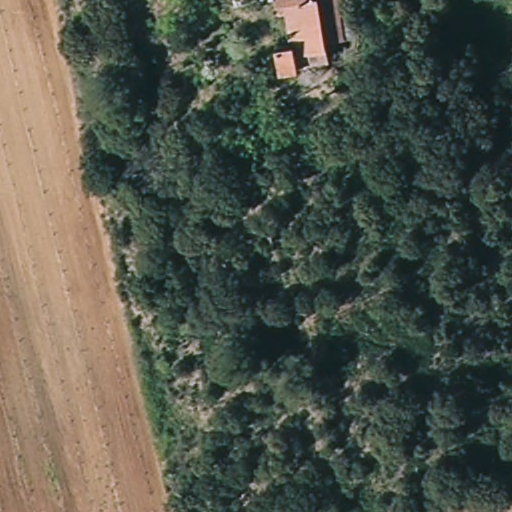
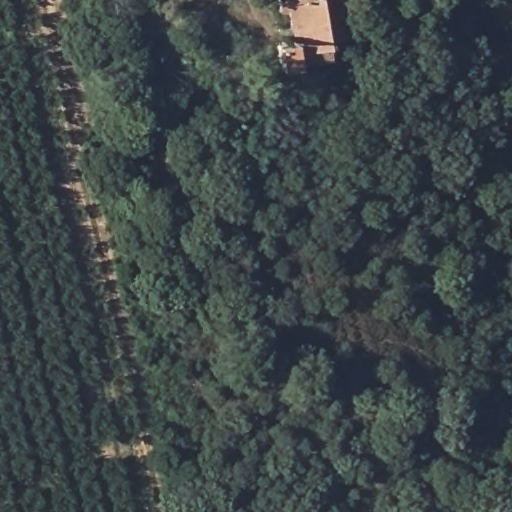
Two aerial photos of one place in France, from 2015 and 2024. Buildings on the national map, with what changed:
unchanged [(324,49),(297,56),(297,69),(277,73),(272,49),(288,46),(281,6),(271,7),(270,0),(332,0),(340,39),(324,44),(324,49)]

